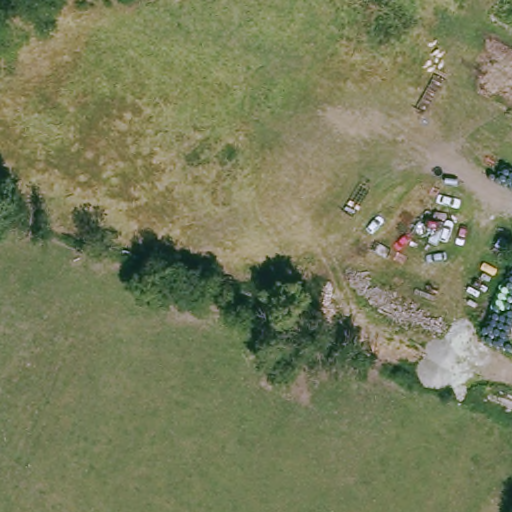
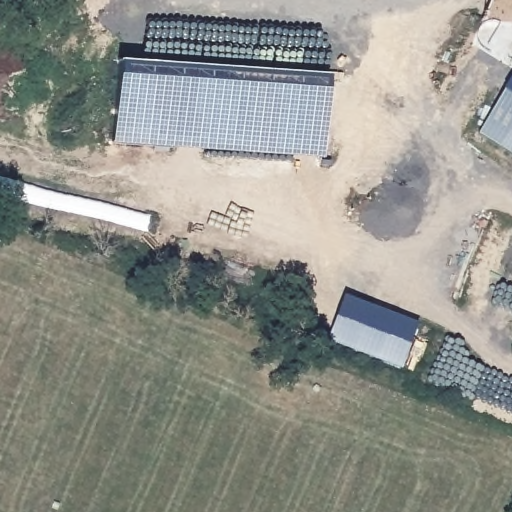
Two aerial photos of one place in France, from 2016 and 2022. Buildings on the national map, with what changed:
new [(119,57),(329,71),(323,155),(114,141),(119,57)]
new [(479,136),(504,95),(512,100),(512,156),(479,136)]
new [(329,344),(344,300),(417,325),(402,371),(329,344)]

